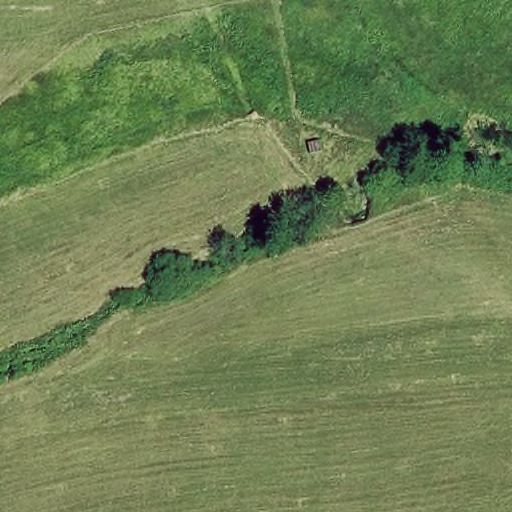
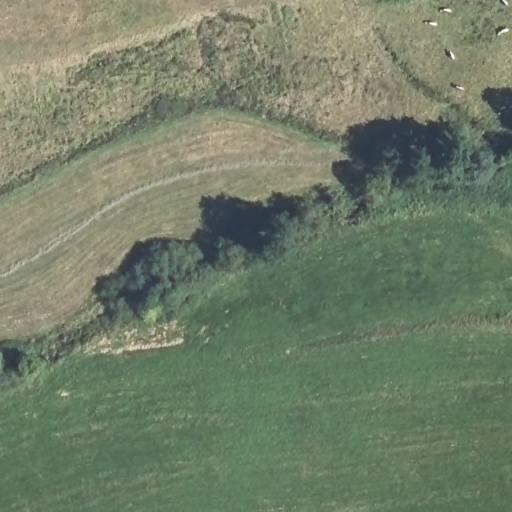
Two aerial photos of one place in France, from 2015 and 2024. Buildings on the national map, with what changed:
[]

